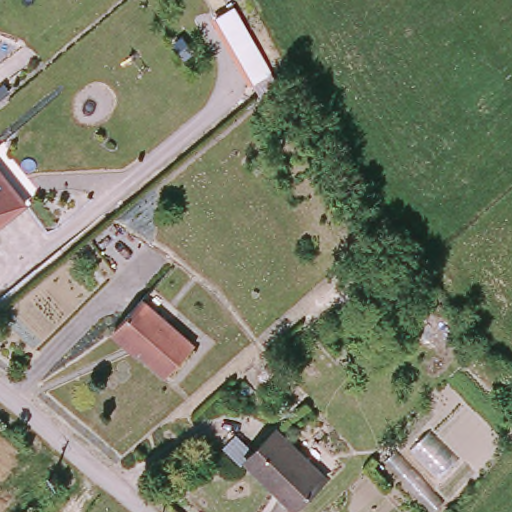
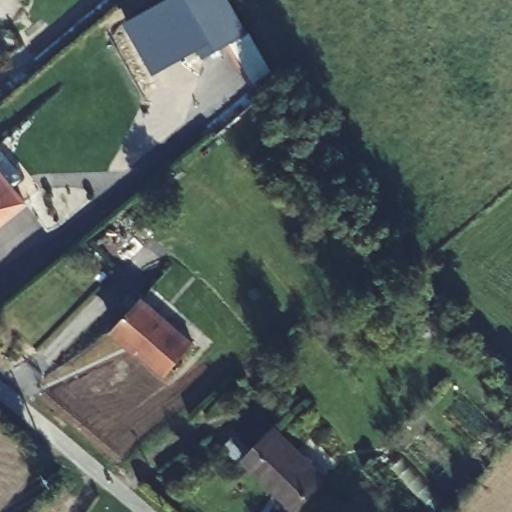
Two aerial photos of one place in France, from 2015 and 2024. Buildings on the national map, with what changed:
new [(161,0),(174,0),(200,47),(157,70),(128,19),(161,0)]
new [(253,80),(232,41),(205,56),(173,0),(231,0),(271,71),(253,80)]
unchanged [(0,215),(0,168),(23,199),(0,215)]
unchanged [(167,380),(116,334),(146,302),(197,350),(167,380)]
unchanged [(325,476),(292,508),(245,460),(278,428),(325,476)]

